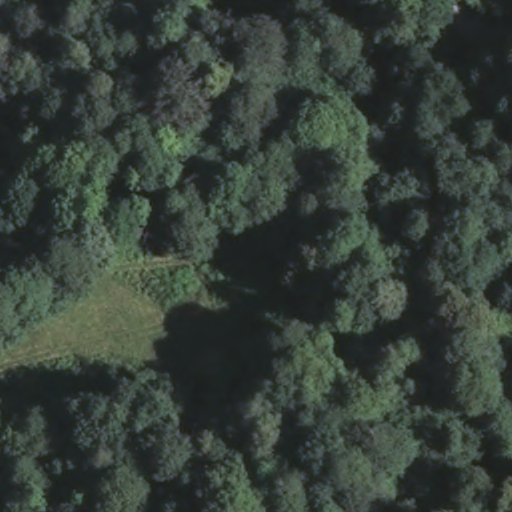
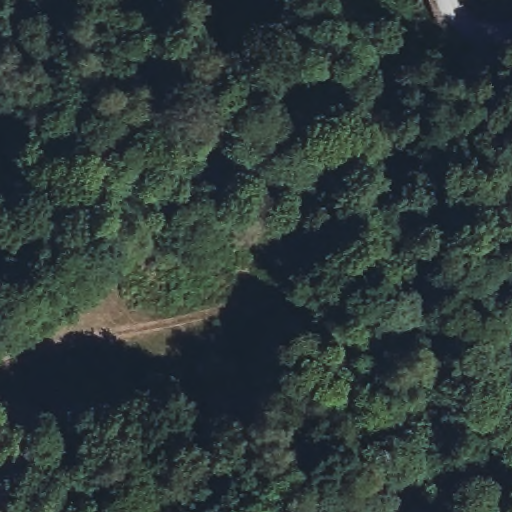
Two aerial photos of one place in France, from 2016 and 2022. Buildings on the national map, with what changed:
[]

